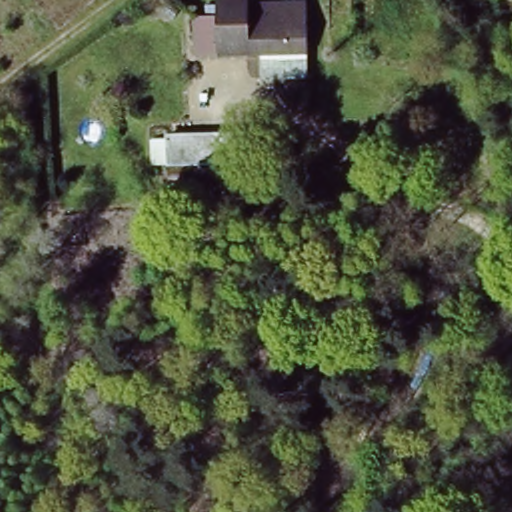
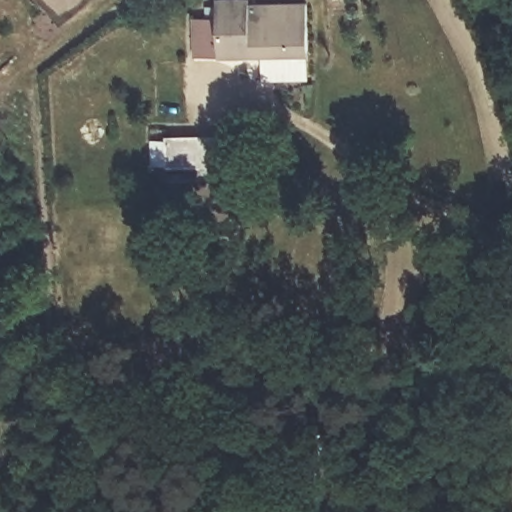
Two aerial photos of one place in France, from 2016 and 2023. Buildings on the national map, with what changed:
unchanged [(309,81),(263,86),(261,60),(193,60),(188,17),(216,16),(216,0),(247,0),(309,3),(309,81)]
unchanged [(236,132),(239,182),(168,183),(166,166),(153,167),(150,138),(236,132)]

